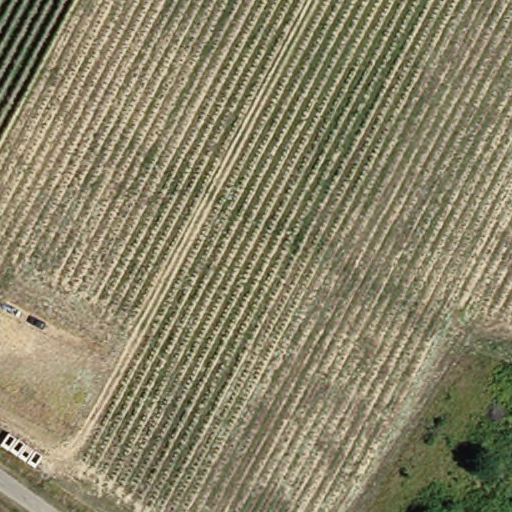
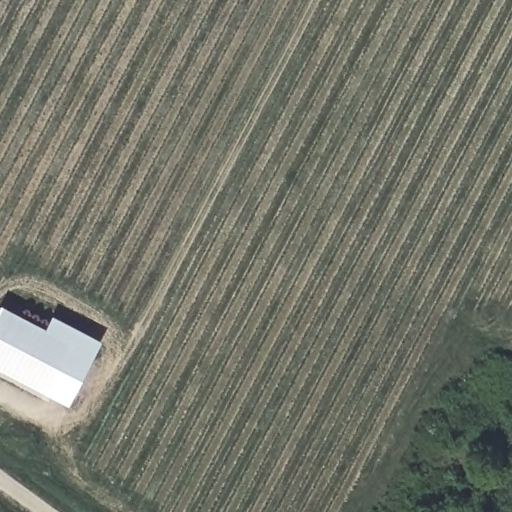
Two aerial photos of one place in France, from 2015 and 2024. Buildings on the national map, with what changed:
new [(0,370),(0,307),(44,328),(51,315),(100,341),(67,406),(0,370)]

